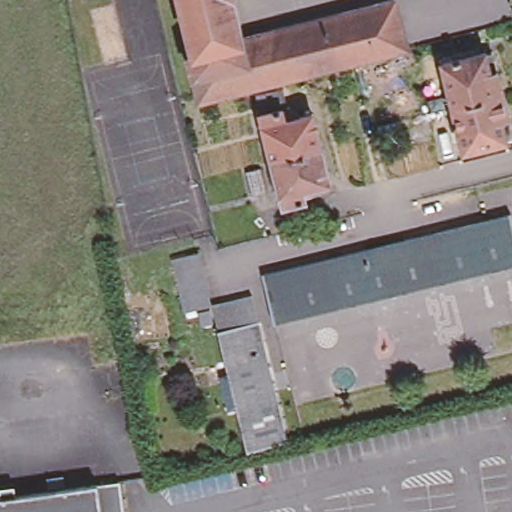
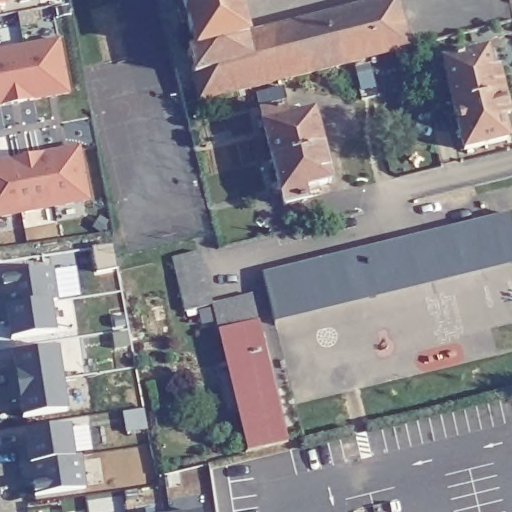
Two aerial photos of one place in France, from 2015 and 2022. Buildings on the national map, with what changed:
new [(0,7),(0,0),(6,0),(7,6),(0,7)]
unchanged [(245,37),(389,0),(397,0),(409,46),(352,60),(200,100),(187,51),(195,50),(182,0),(235,0),(245,37)]
new [(0,107),(0,50),(60,39),(70,94),(0,107)]
unchanged [(439,60),(482,50),(487,70),(493,70),(499,92),(450,105),(439,60)]
unchanged [(499,92),(504,116),(497,118),(502,138),(460,149),(450,105),(499,92)]
unchanged [(262,107),(284,102),(287,114),(314,106),(322,141),(272,154),(262,107)]
unchanged [(322,141),(330,176),(304,183),(307,195),(284,200),(272,154),(322,141)]
new [(0,219),(0,161),(80,145),(90,202),(0,219)]
unchanged [(260,268),(509,208),(512,220),(512,254),(275,312),(277,318),(274,318),(260,268)]
unchanged [(171,278),(168,266),(165,255),(165,252),(192,246),(192,247),(195,260),(198,272),(202,286),(205,298),(178,305),(175,291),(171,278)]
new [(52,301),(57,334),(9,340),(5,341),(2,325),(0,325),(0,288),(0,287),(0,283),(0,275),(52,268),(59,301),(52,301)]
unchanged [(205,298),(218,295),(231,292),(245,289),(252,315),(255,330),(282,435),(240,446),(239,443),(246,441),(217,325),(210,326),(210,325),(212,325),(205,298)]
new [(69,412),(22,420),(13,355),(58,347),(69,412)]
new [(75,455),(82,455),(87,488),(32,498),(31,485),(24,487),(19,451),(27,448),(25,432),(71,425),(75,455)]
demolished [(70,476),(71,486),(55,488),(54,478),(70,476)]
demolished [(109,512),(0,512),(0,499),(105,484),(109,512)]

